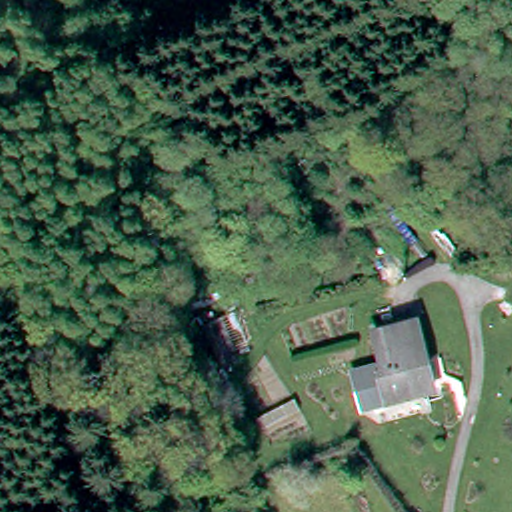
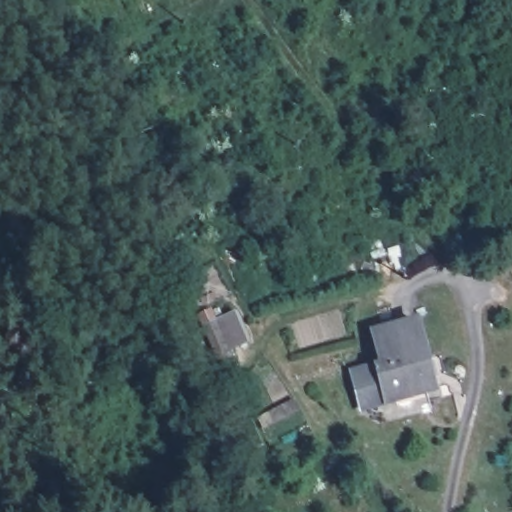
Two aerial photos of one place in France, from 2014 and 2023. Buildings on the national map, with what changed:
unchanged [(380,332),(392,328),(388,312),(397,309),(402,326),(422,321),(430,350),(387,360),(380,332)]
unchanged [(212,322),(228,359),(215,365),(200,327),(212,322)]
unchanged [(368,407),(358,372),(382,365),(389,364),(387,360),(430,350),(440,388),(392,401),(368,407)]

